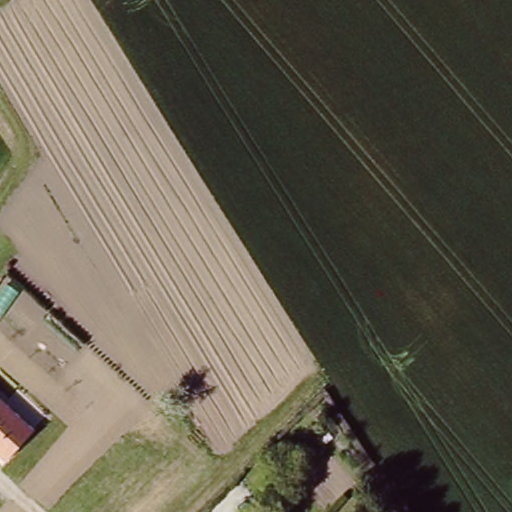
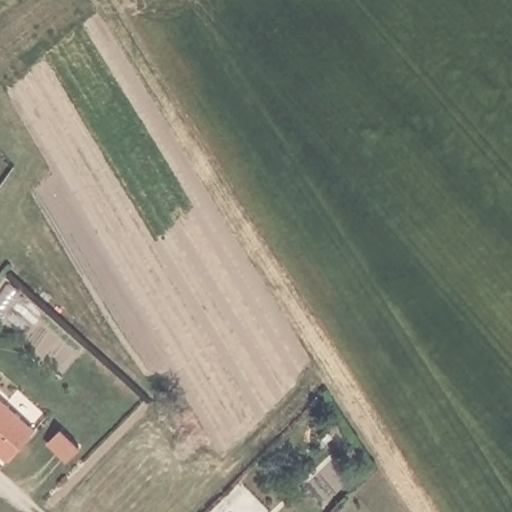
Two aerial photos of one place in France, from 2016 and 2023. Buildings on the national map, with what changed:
unchanged [(33,427),(5,458),(0,454),(0,397),(33,427)]

